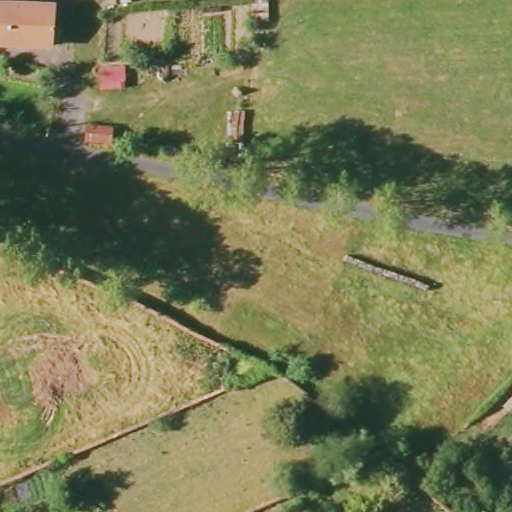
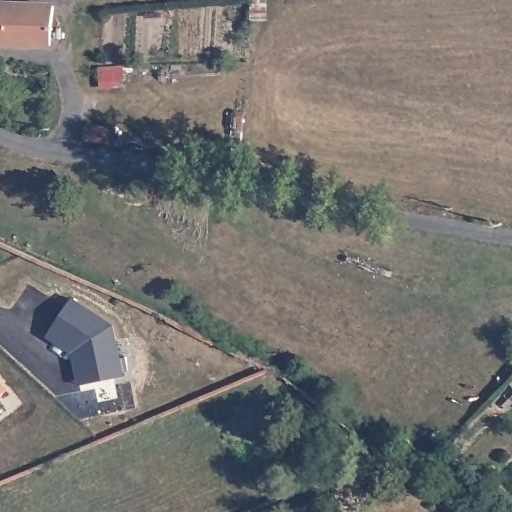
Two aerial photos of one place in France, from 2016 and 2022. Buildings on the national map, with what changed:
unchanged [(50,46),(0,44),(0,4),(54,8),(50,46)]
new [(73,348),(51,334),(73,301),(114,327),(123,378),(89,385),(80,387),(73,348)]
new [(7,391),(0,397),(0,383),(7,391)]
unchanged [(512,383),(512,396),(505,390),(512,383)]

